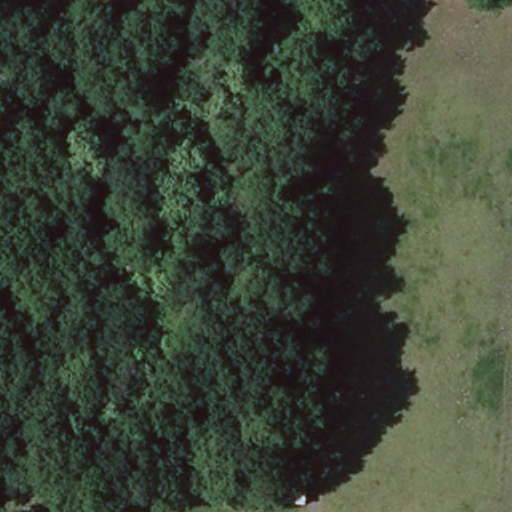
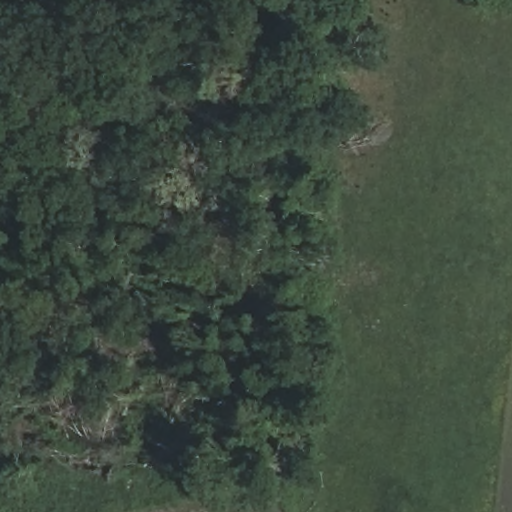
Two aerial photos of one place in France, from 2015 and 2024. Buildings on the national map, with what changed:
[]

